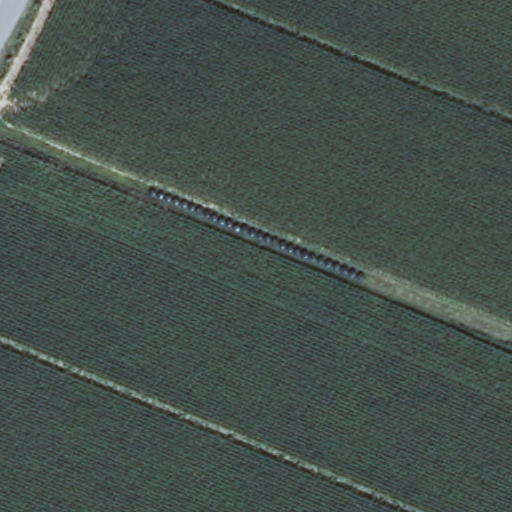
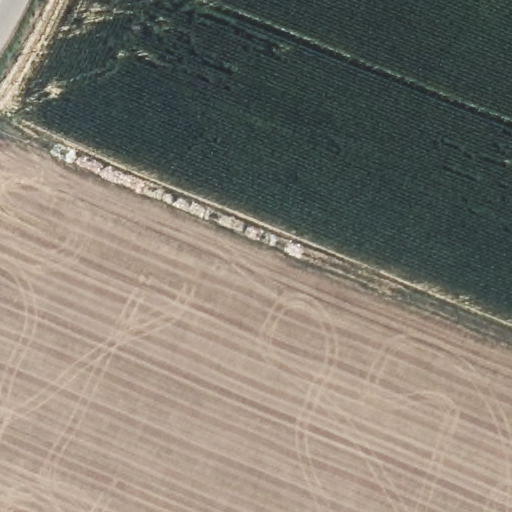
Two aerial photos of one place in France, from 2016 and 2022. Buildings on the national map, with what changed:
[]

